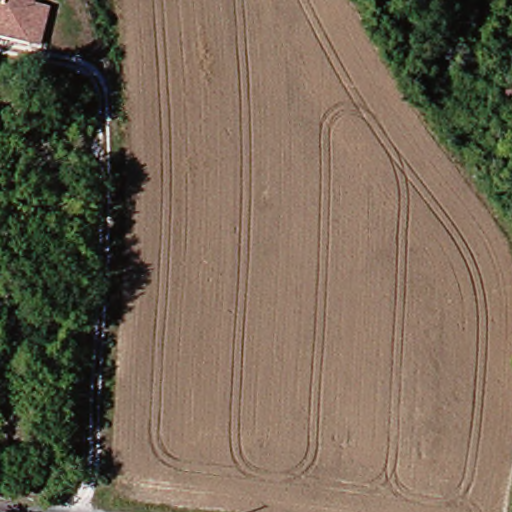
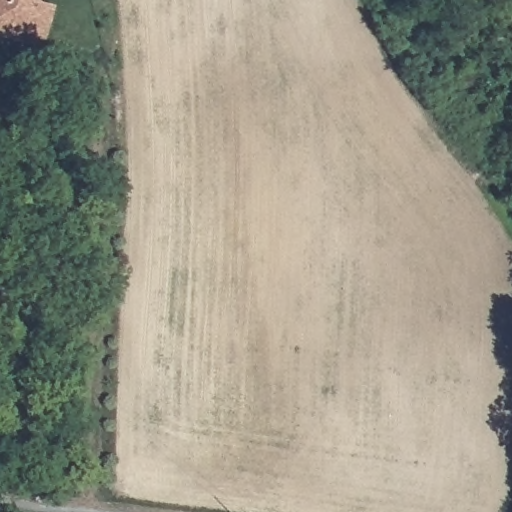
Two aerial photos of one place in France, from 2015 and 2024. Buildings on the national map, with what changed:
unchanged [(0,31),(0,0),(33,0),(31,7),(48,11),(40,41),(0,31)]
unchanged [(512,99),(512,125),(502,126),(499,101),(512,99)]

